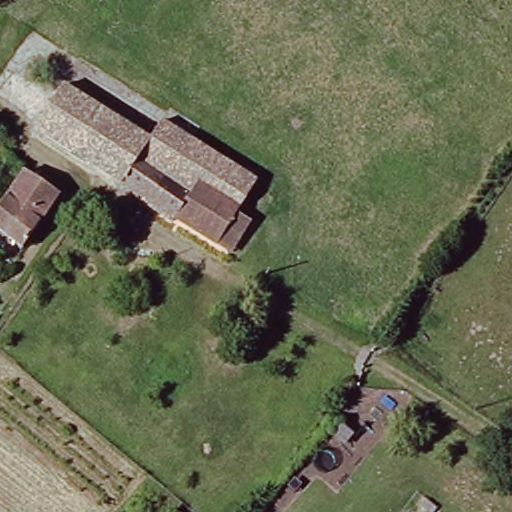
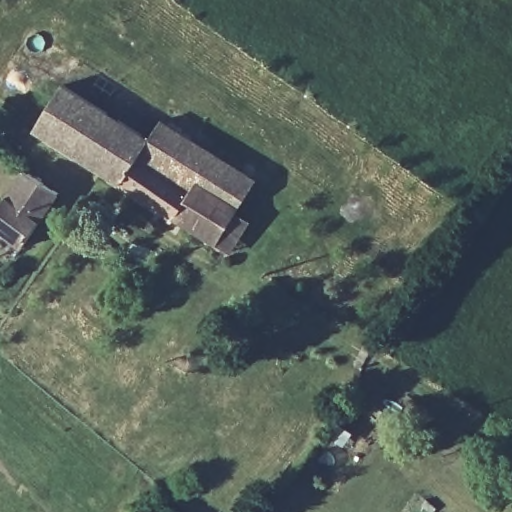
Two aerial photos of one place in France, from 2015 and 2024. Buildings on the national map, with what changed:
unchanged [(226,253),(213,244),(172,218),(170,221),(117,187),(119,185),(32,128),(61,83),(147,140),(160,121),(254,180),(232,214),(246,223),(226,253)]
unchanged [(0,206),(6,197),(8,199),(25,175),(56,198),(20,252),(0,237),(0,206)]

